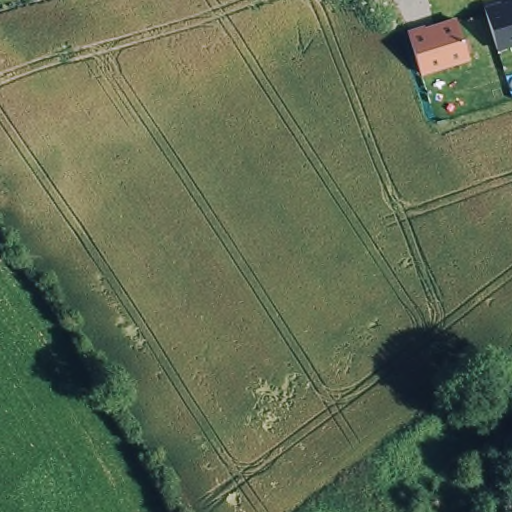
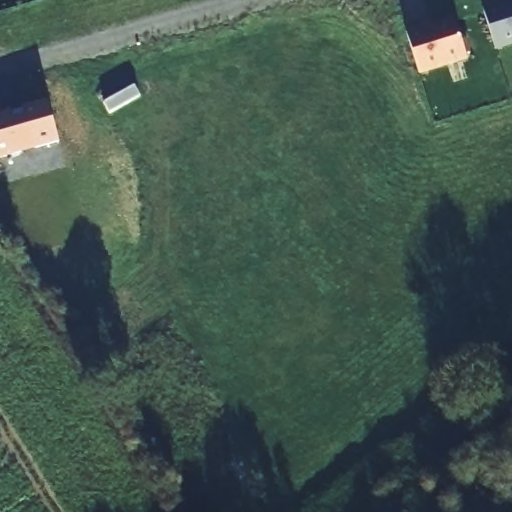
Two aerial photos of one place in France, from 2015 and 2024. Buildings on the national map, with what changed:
unchanged [(497,48),(484,6),(506,0),(512,0),(512,44),(497,48)]
unchanged [(469,61),(421,76),(407,30),(454,16),(469,61)]
new [(0,113),(49,101),(60,142),(0,158),(0,113)]

